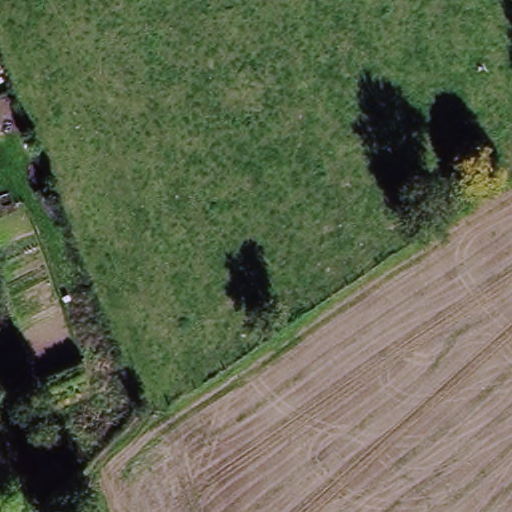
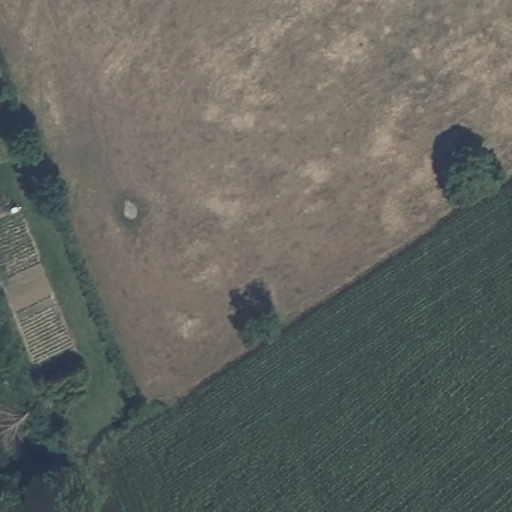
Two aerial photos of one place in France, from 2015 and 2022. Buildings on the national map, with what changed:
[]

